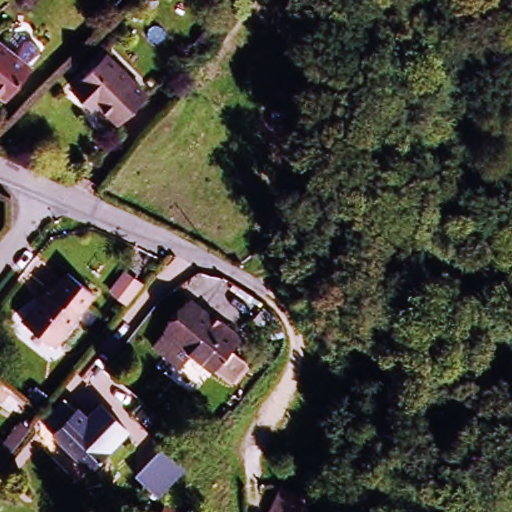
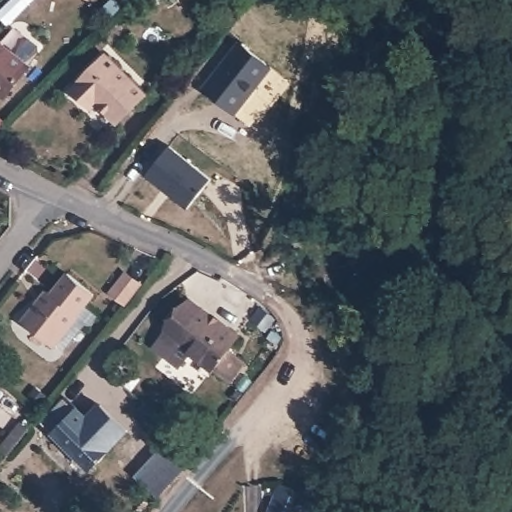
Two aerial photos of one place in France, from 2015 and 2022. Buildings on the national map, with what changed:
new [(237,115),(204,88),(241,40),(274,67),(237,115)]
unchanged [(0,101),(0,53),(27,72),(5,104),(0,101)]
unchanged [(109,57),(148,101),(119,134),(71,94),(109,57)]
new [(173,150),(214,183),(190,212),(174,199),(173,195),(166,190),(165,192),(149,179),(173,150)]
unchanged [(77,317),(79,319),(54,349),(23,324),(48,294),(53,297),(69,277),(93,296),(77,317)]
unchanged [(126,308),(110,295),(125,277),(140,290),(126,308)]
unchanged [(236,343),(227,354),(244,368),(229,385),(213,372),(210,375),(176,347),(163,337),(168,331),(189,305),(236,343)]
unchanged [(106,457),(108,459),(88,479),(41,432),(64,408),(93,438),(102,429),(118,445),(106,457)]
unchanged [(2,451),(22,426),(28,431),(8,456),(2,451)]
unchanged [(182,464),(184,466),(156,495),(154,493),(134,474),(161,445),(182,464)]
unchanged [(302,512),(271,512),(280,488),(307,500),(302,512)]
unchanged [(166,507),(174,512),(163,512),(166,507)]

